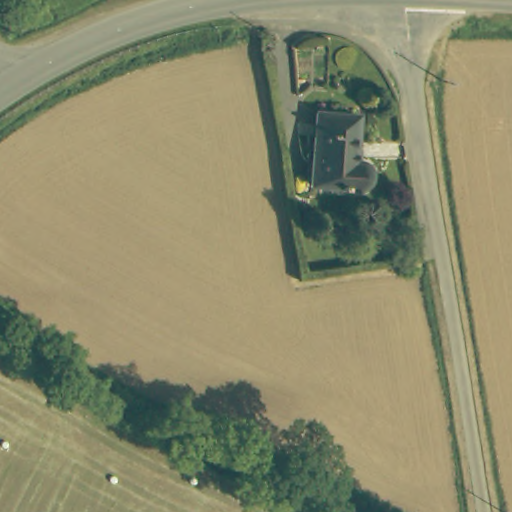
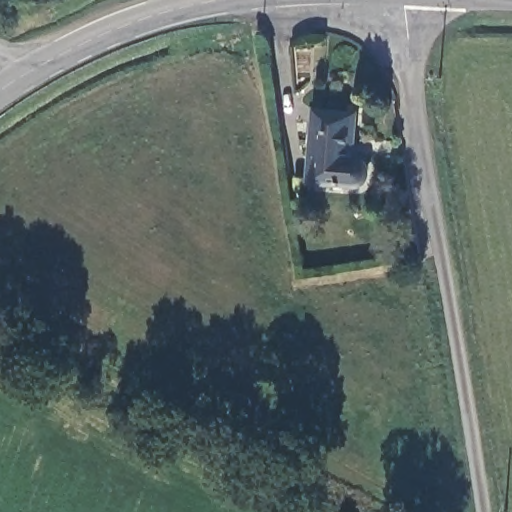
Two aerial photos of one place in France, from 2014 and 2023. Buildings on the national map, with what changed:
unchanged [(328,108),(372,113),(366,155),(377,163),(378,170),(377,176),(374,182),(372,184),(322,178),(328,108)]

